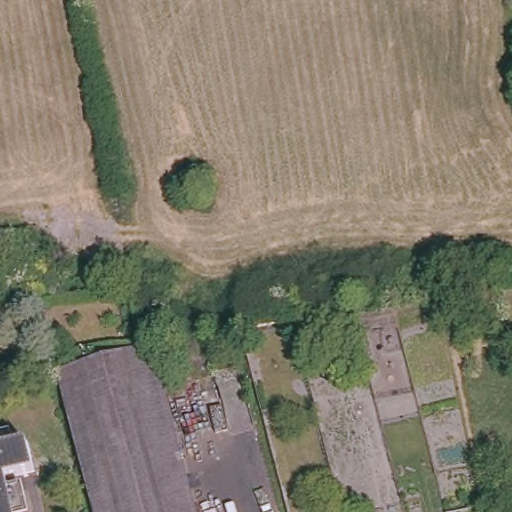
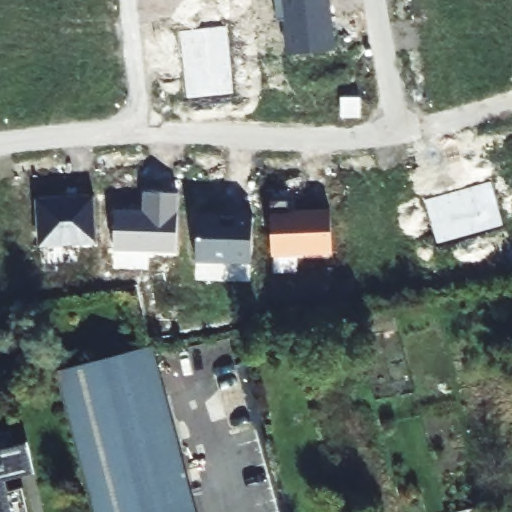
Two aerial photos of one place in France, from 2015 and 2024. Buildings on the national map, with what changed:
new [(289,54),(285,21),(277,22),(275,0),(330,0),(336,49),(289,54)]
new [(180,32),(228,27),(233,94),(187,98),(180,32)]
new [(425,200),(491,182),(504,227),(438,244),(425,200)]
new [(115,210),(142,210),(143,192),(179,193),(176,252),(114,250),(115,210)]
new [(39,246),(36,199),(94,196),(96,242),(39,246)]
new [(270,214),(330,210),(334,255),(272,256),(270,214)]
new [(198,216),(252,218),(251,263),(195,262),(198,216)]
unchanged [(151,351),(195,512),(94,512),(57,375),(151,351)]
unchanged [(18,427),(21,440),(34,437),(42,467),(25,471),(15,473),(14,473),(18,487),(28,484),(31,483),(33,491),(38,511),(33,512),(0,512),(0,431),(18,427)]

